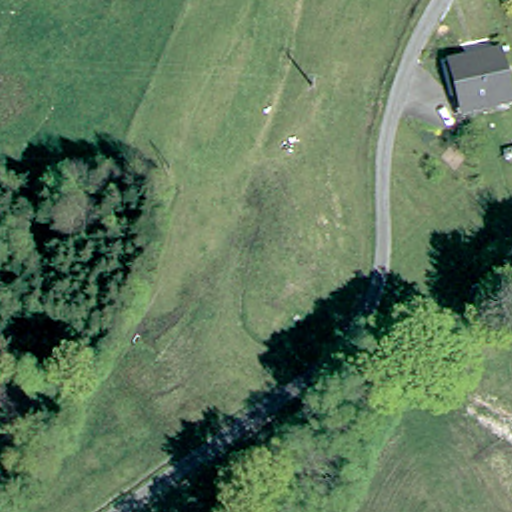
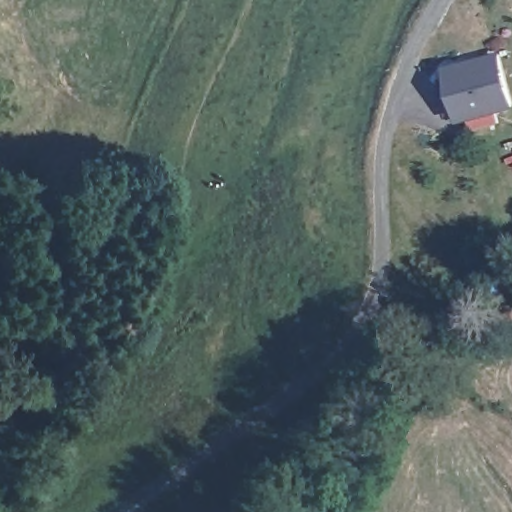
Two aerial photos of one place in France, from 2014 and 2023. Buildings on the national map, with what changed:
unchanged [(512,107),(460,120),(449,73),(500,61),(512,107)]

